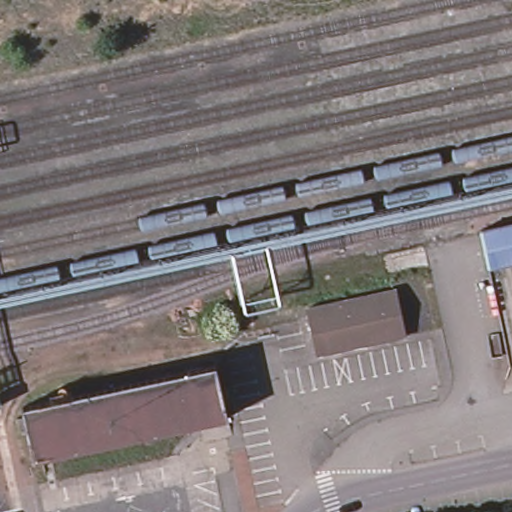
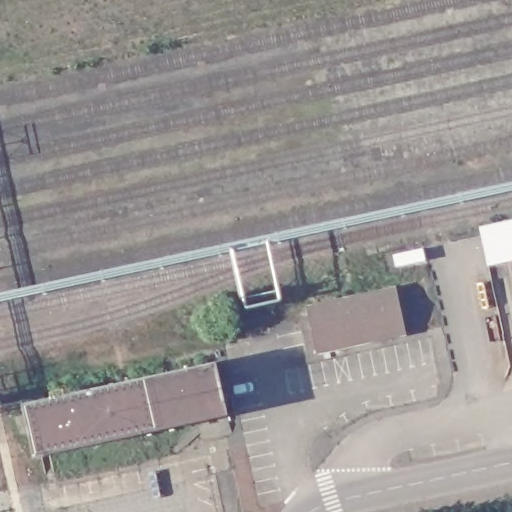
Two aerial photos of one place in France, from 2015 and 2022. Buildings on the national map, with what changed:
unchanged [(512,221),(512,259),(483,265),(477,233),(476,229),(512,221)]
unchanged [(395,288),(405,334),(317,353),(307,307),(395,288)]
unchanged [(28,432),(23,405),(218,366),(223,393),(228,419),(33,458),(28,432)]

